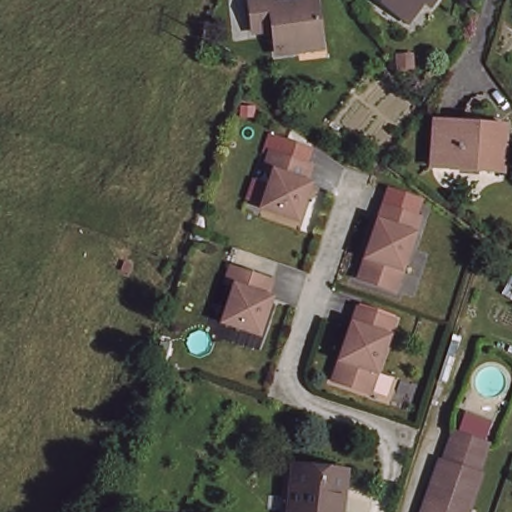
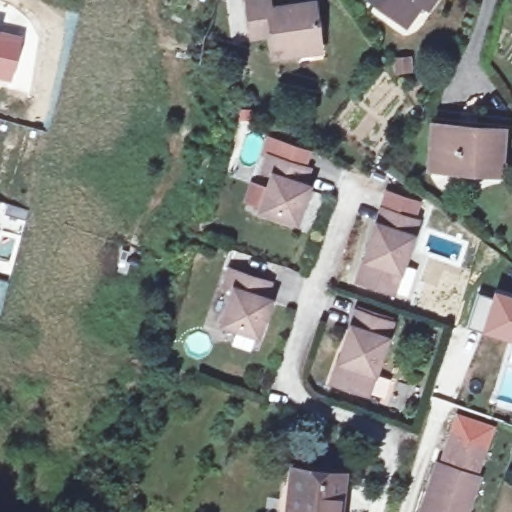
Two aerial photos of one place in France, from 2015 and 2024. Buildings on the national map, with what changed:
unchanged [(395,10),(382,0),(403,0),(395,10)]
unchanged [(420,3),(415,0),(422,0),(420,3)]
unchanged [(316,51),(295,53),(295,61),(274,63),(270,38),(248,39),(246,8),(270,8),(271,15),(311,11),(316,51)]
new [(15,77),(0,74),(0,32),(25,38),(15,77)]
unchanged [(500,167),(482,167),(481,175),(430,173),(430,129),(502,130),(500,167)]
unchanged [(257,184),(272,189),(276,175),(267,172),(273,155),(314,168),(309,184),(313,186),(300,222),(265,210),(266,207),(251,201),(257,184)]
unchanged [(397,293),(361,281),(386,209),(421,222),(397,293)]
unchanged [(268,298),(272,300),(260,337),(224,324),(236,289),(227,285),(233,268),(273,283),(268,298)]
new [(477,291),(491,295),(493,288),(512,294),(512,342),(465,326),(477,291)]
unchanged [(370,392),(332,379),(360,306),(396,319),(370,392)]
unchanged [(474,476),(462,510),(459,508),(458,512),(415,512),(432,461),(437,463),(447,432),(480,444),(470,474),(474,476)]
unchanged [(276,512),(285,474),(340,484),(335,512),(276,512)]

